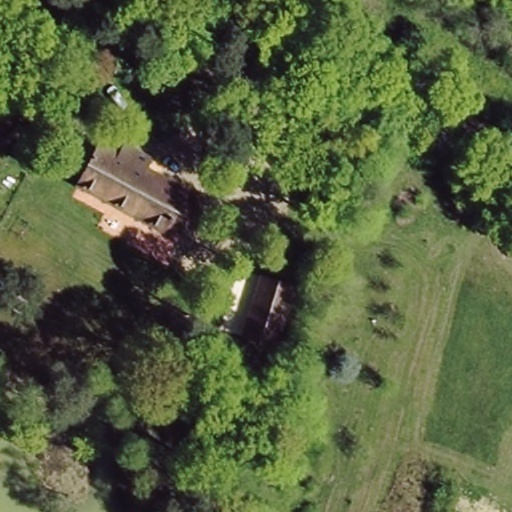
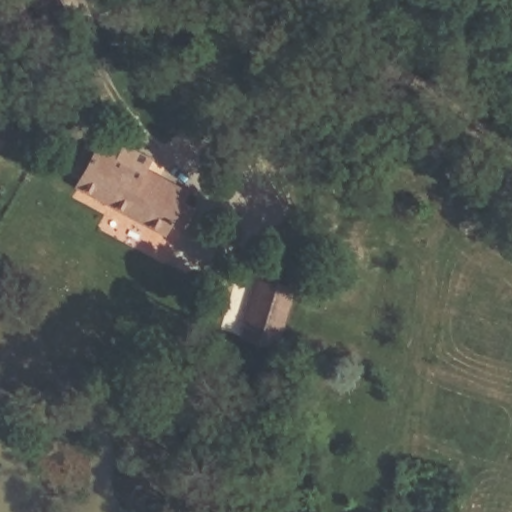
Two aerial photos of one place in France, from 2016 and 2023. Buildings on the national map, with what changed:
unchanged [(0,139),(0,134),(2,135),(0,139)]
unchanged [(100,151),(198,198),(180,237),(75,187),(100,151)]
unchanged [(295,286),(277,344),(241,335),(259,275),(295,286)]

